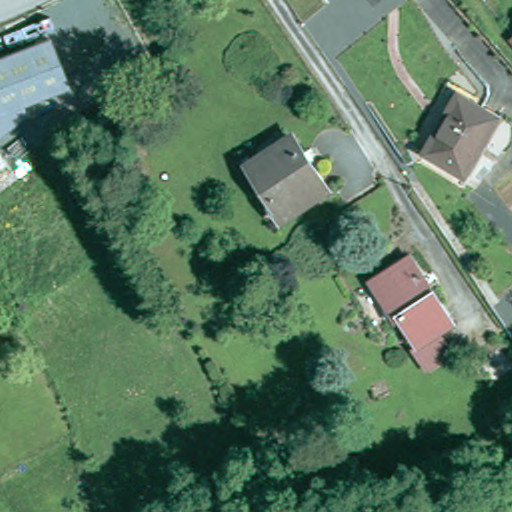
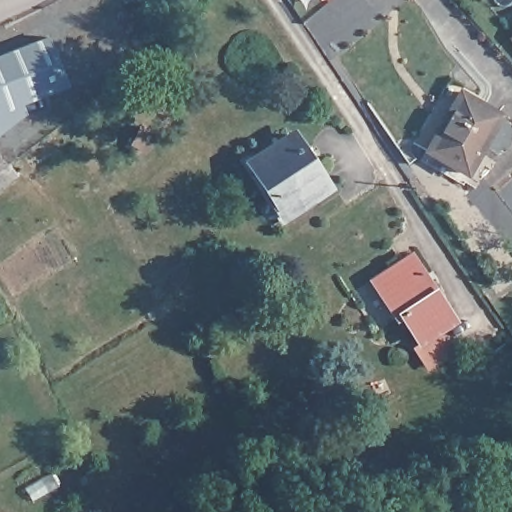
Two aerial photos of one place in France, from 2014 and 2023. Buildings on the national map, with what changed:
unchanged [(30,113),(0,138),(0,57),(54,35),(72,86),(27,105),(30,113)]
unchanged [(476,176),(434,155),(466,94),(507,116),(476,176)]
unchanged [(280,219),(266,197),(269,195),(247,161),(287,135),(307,165),(309,163),(326,189),(280,219)]
unchanged [(422,372),(409,352),(412,350),(397,326),(392,329),(366,287),(404,262),(446,327),(432,337),(444,358),(422,372)]

